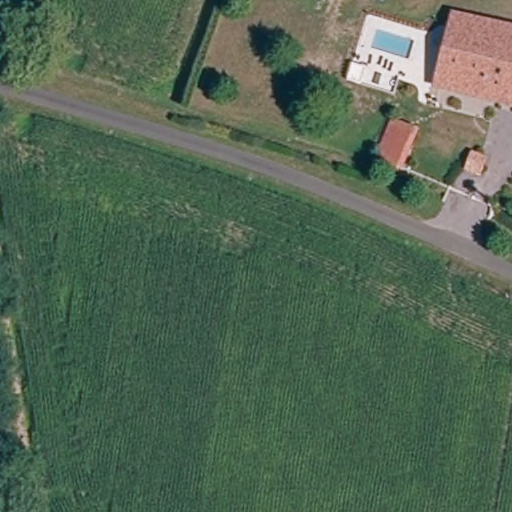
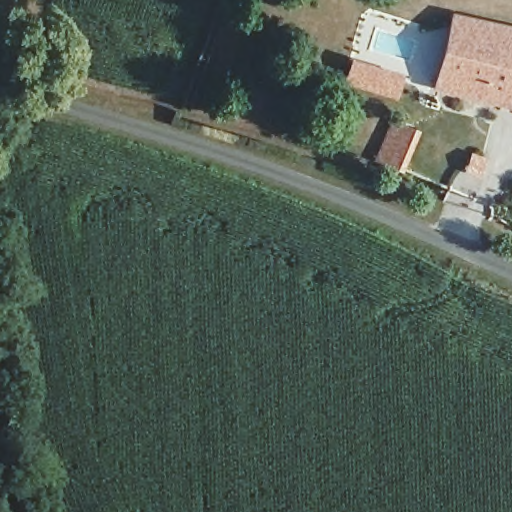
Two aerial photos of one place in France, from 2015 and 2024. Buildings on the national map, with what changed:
unchanged [(464,38),(472,8),(512,20),(512,123),(444,104),(464,38)]
new [(397,98),(346,79),(353,57),(406,73),(404,80),(397,98)]
unchanged [(389,127),(413,138),(399,171),(377,161),(389,127)]

